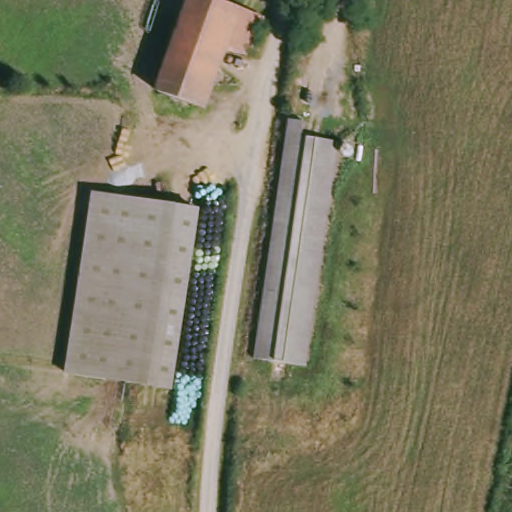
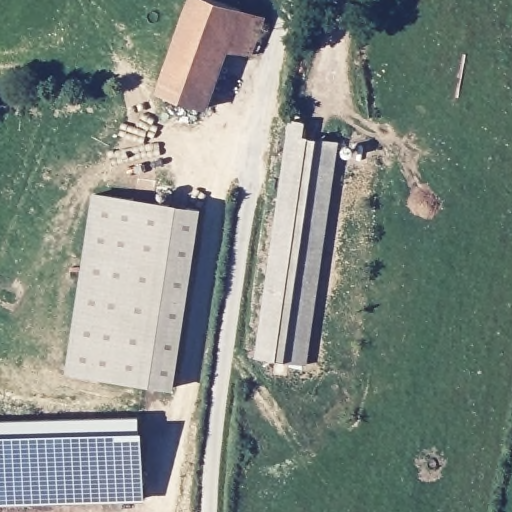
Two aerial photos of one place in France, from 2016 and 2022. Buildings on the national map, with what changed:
unchanged [(159,91),(195,0),(228,0),(270,16),(253,59),(231,50),(210,111),(159,91)]
unchanged [(300,123),(298,137),(332,141),(314,365),(267,361),(287,137),(282,137),(284,121),(300,123)]
unchanged [(206,211),(173,388),(67,370),(100,192),(206,211)]
new [(143,431),(144,502),(0,503),(0,419),(139,417),(139,430),(143,431)]

